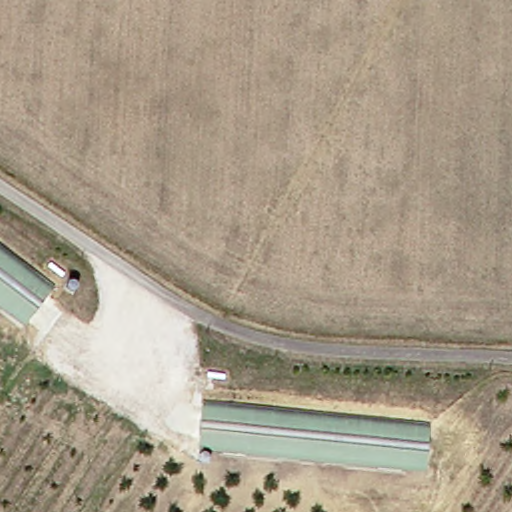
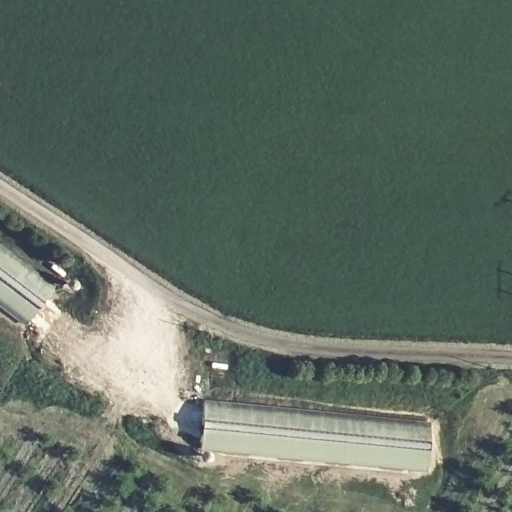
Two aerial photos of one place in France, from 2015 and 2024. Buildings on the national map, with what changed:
unchanged [(25,324),(0,305),(0,242),(55,285),(25,324)]
unchanged [(201,401),(431,425),(427,475),(197,452),(201,401)]

